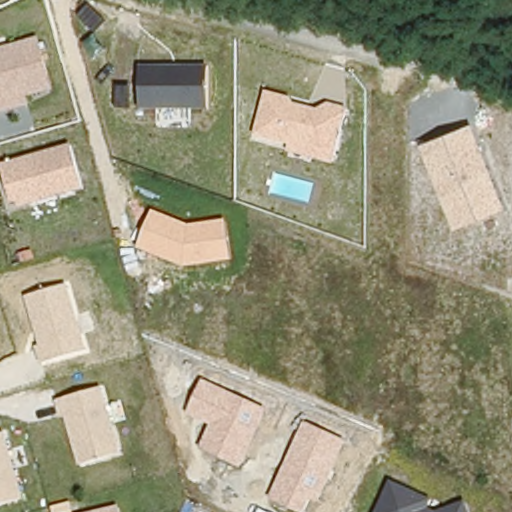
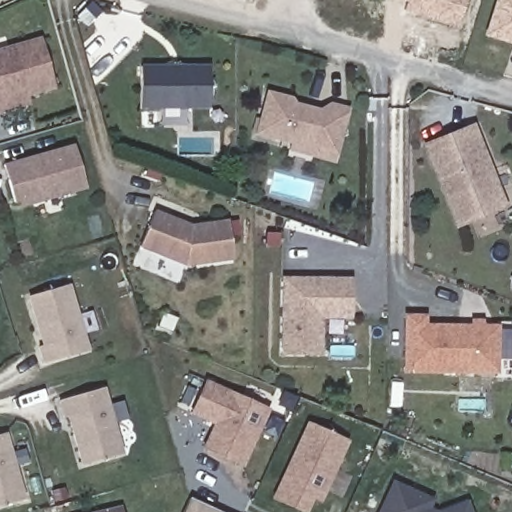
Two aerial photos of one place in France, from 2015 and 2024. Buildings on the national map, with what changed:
new [(457,28),(405,11),(407,3),(398,0),(465,0),(457,28)]
new [(495,0),(512,0),(512,45),(483,36),(495,0)]
unchanged [(41,40),(55,89),(29,99),(32,106),(0,115),(0,51),(41,40)]
unchanged [(141,111),(140,65),(210,65),(212,109),(141,111)]
unchanged [(334,165),(288,154),(290,146),(254,137),(266,91),(291,98),(294,105),(317,110),(328,104),(350,108),(334,165)]
unchanged [(455,230),(421,144),(473,124),(507,208),(455,230)]
unchanged [(73,148),(84,190),(39,204),(27,197),(16,201),(7,166),(73,148)]
unchanged [(234,261),(186,269),(137,248),(152,211),(188,225),(227,219),(234,261)]
new [(322,320),(322,357),(280,357),(281,277),(352,278),(352,319),(322,320)]
unchanged [(89,351),(47,363),(27,298),(70,286),(89,351)]
new [(470,321),(485,321),(485,326),(500,326),(499,375),(405,373),(405,315),(427,315),(427,325),(471,325),(470,321)]
unchanged [(242,469),(202,450),(212,426),(188,415),(205,381),(269,410),(242,469)]
unchanged [(121,455),(81,467),(62,399),(103,388),(121,455)]
unchanged [(310,500),(304,512),(296,512),(271,502),(305,423),(348,441),(321,505),(310,500)]
unchanged [(25,500),(0,506),(0,434),(7,433),(25,500)]
unchanged [(435,499),(431,509),(438,512),(377,512),(392,480),(435,499)]
new [(220,512),(184,512),(191,499),(220,512)]
unchanged [(472,512),(438,512),(468,502),(472,512)]
unchanged [(120,512),(114,512),(120,511),(120,512)]

